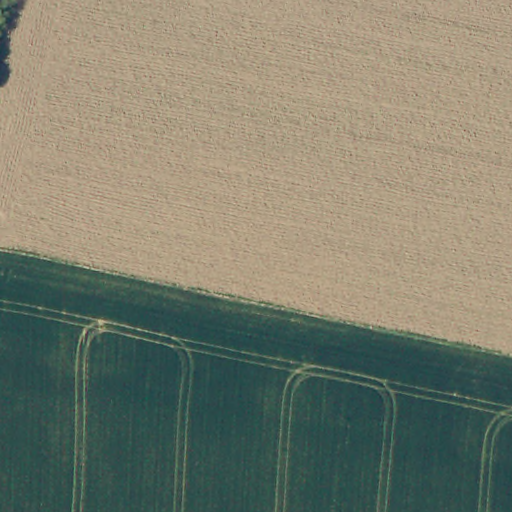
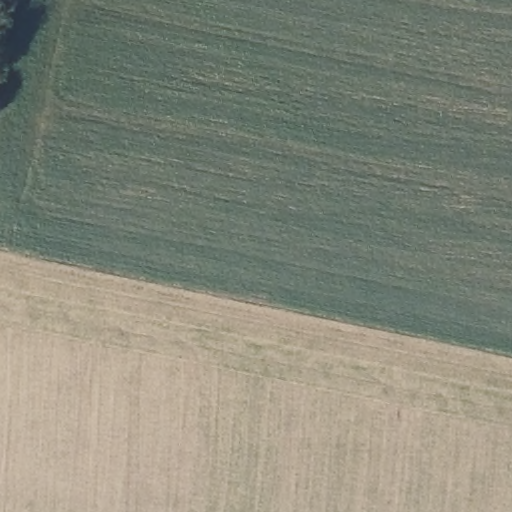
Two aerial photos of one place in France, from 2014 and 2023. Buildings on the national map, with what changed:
[]

